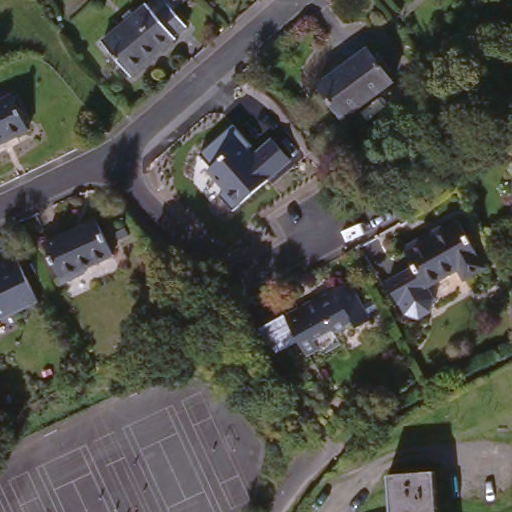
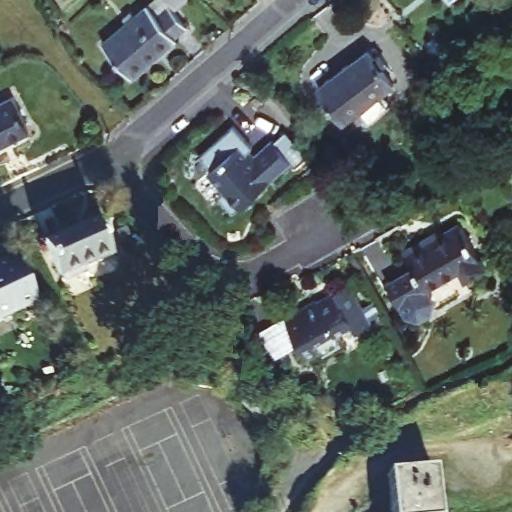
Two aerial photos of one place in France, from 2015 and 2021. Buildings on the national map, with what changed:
unchanged [(175,14),(185,27),(173,37),(175,40),(130,76),(102,43),(149,3),(153,0),(191,0),(175,14)]
unchanged [(342,122),(317,89),(367,51),(373,59),(379,55),(386,64),(380,68),(392,84),(342,122)]
unchanged [(0,105),(12,98),(29,131),(0,146),(0,105)]
unchanged [(234,208),(220,193),(224,189),(208,170),(212,166),(200,155),(231,126),(255,152),(270,139),(290,161),(234,208)]
unchanged [(90,270),(91,273),(69,285),(50,246),(101,221),(117,256),(90,270)]
unchanged [(477,277),(471,267),(439,285),(445,297),(442,309),(431,315),(420,311),(412,299),(410,301),(400,284),(430,268),(418,248),(443,234),(445,238),(472,222),(496,266),(477,277)]
unchanged [(0,259),(14,252),(37,300),(0,320),(0,259)]
unchanged [(260,334),(286,320),(285,319),(317,302),(320,308),(337,299),(333,294),(349,285),(371,325),(357,333),(354,328),(337,338),(342,347),(323,359),(320,352),(308,359),(300,345),(274,359),(260,334)]
unchanged [(257,380),(280,413),(263,425),(240,392),(257,380)]
unchanged [(437,470),(441,512),(392,512),(389,474),(437,470)]

